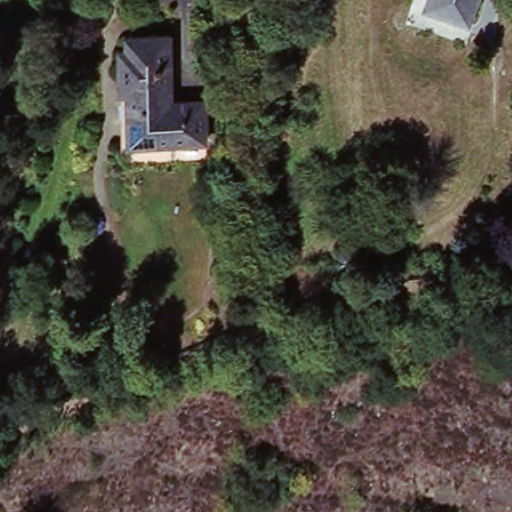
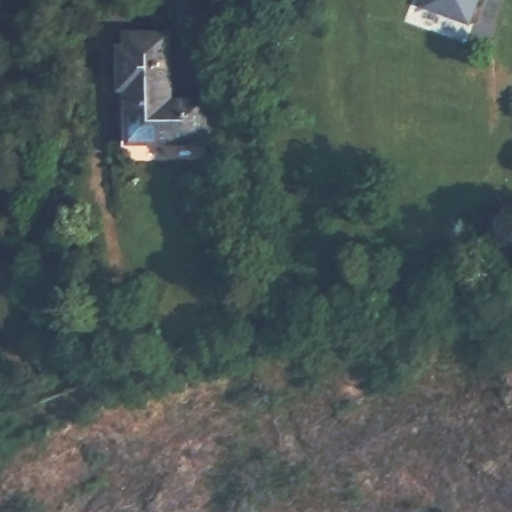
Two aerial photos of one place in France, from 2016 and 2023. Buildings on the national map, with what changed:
unchanged [(473,23),(427,8),(430,0),(481,0),(473,23)]
unchanged [(173,40),(174,106),(208,106),(208,149),(132,150),(131,95),(124,95),(125,53),(130,52),(130,39),(173,40)]

